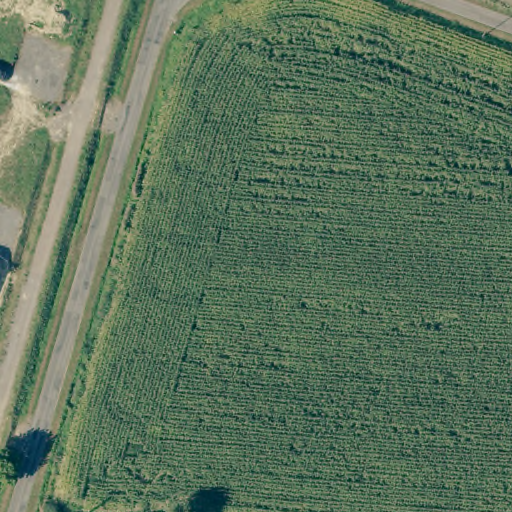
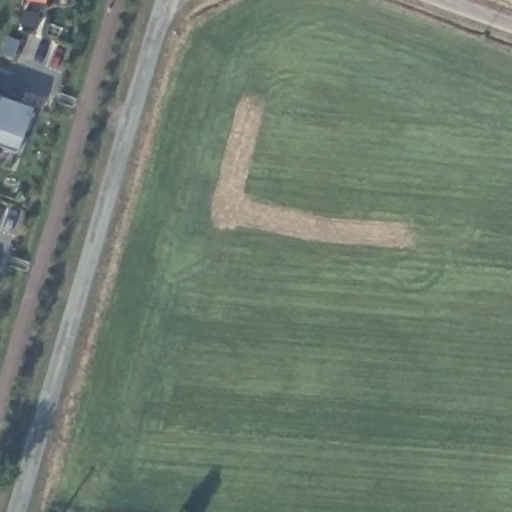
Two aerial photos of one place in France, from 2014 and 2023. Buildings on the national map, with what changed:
new [(33,109),(23,139),(17,154),(0,148),(0,98),(33,109)]

